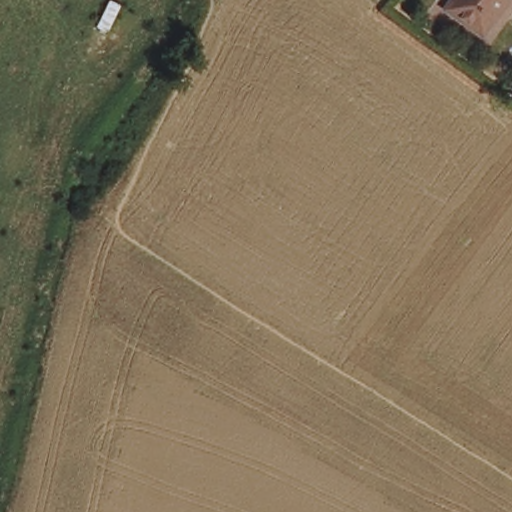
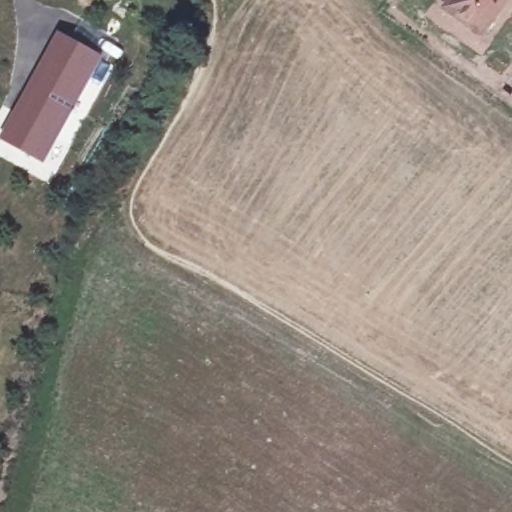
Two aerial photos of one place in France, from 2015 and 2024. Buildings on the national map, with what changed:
unchanged [(459,0),(499,0),(481,23),(456,4),(459,0)]
new [(97,59),(43,159),(4,137),(58,38),(97,59)]

